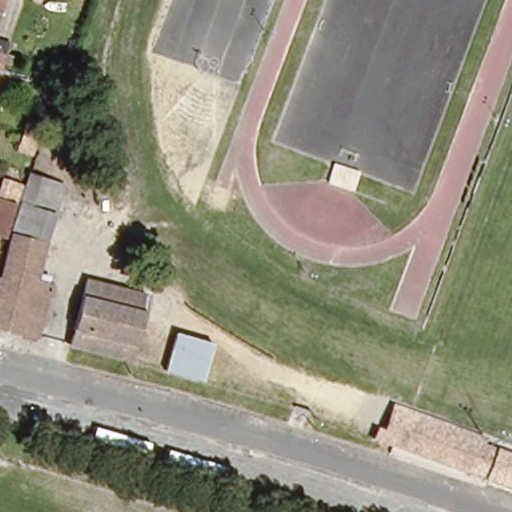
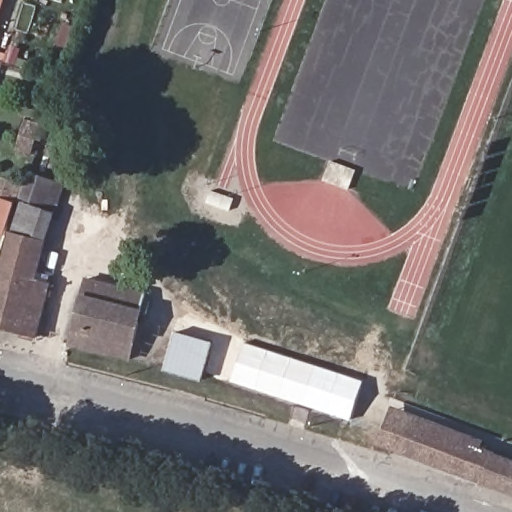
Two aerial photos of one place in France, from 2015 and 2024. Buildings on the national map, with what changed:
unchanged [(47,131),(42,149),(27,145),(34,126),(47,131)]
unchanged [(79,140),(75,153),(61,149),(65,135),(79,140)]
unchanged [(0,282),(3,273),(0,272),(33,171),(67,183),(35,283),(51,288),(37,332),(0,323),(0,282)]
unchanged [(9,230),(0,227),(0,190),(20,196),(9,230)]
unchanged [(89,280),(149,296),(132,360),(72,345),(89,280)]
unchanged [(183,334),(220,345),(207,383),(171,372),(183,334)]
new [(350,420),(230,381),(245,341),(363,381),(350,420)]
unchanged [(388,449),(401,414),(421,421),(462,436),(484,444),(482,451),(501,458),(491,486),(396,452),(388,449)]
unchanged [(501,457),(512,462),(512,494),(491,486),(501,458),(501,457)]

